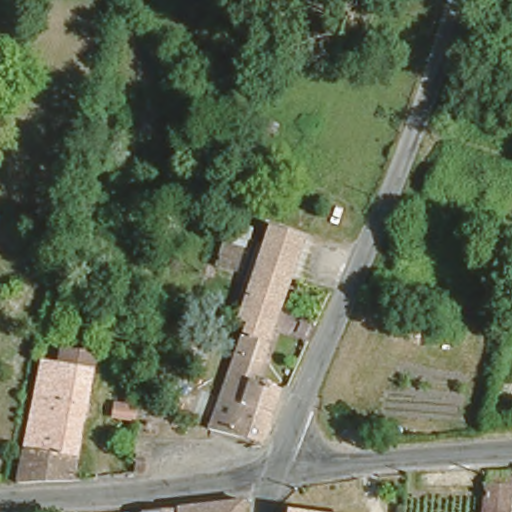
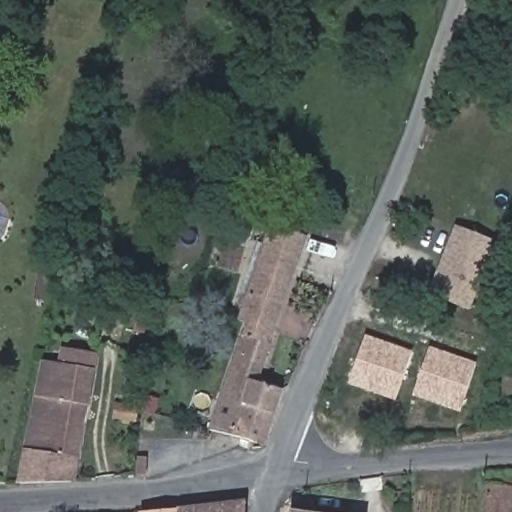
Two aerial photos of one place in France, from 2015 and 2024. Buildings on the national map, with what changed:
new [(469,309),(428,292),(456,224),(497,241),(469,309)]
unchanged [(256,378),(283,387),(263,443),(209,428),(248,323),(242,321),(269,244),(299,255),(256,378)]
unchanged [(410,268),(403,286),(387,279),(395,262),(410,268)]
new [(397,401),(348,384),(367,334),(412,351),(397,401)]
unchanged [(65,346),(97,351),(72,476),(18,479),(47,359),(62,362),(65,346)]
new [(430,346),(477,363),(460,412),(412,396),(430,346)]
unchanged [(137,419),(111,416),(113,399),(124,400),(126,390),(139,392),(137,419)]
unchanged [(487,467),(512,467),(512,485),(512,484),(509,512),(482,512),(487,467)]
unchanged [(247,497),(246,512),(141,512),(142,507),(247,497)]

